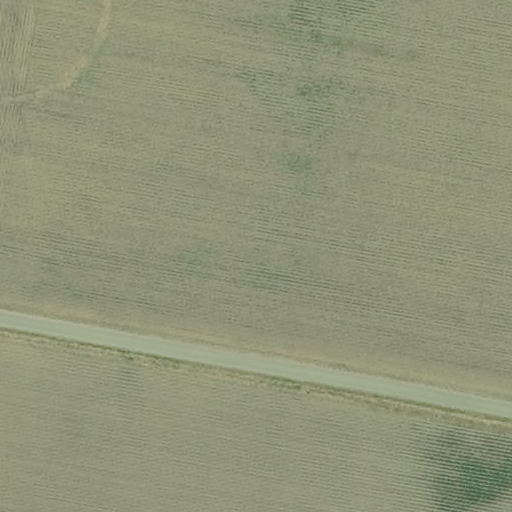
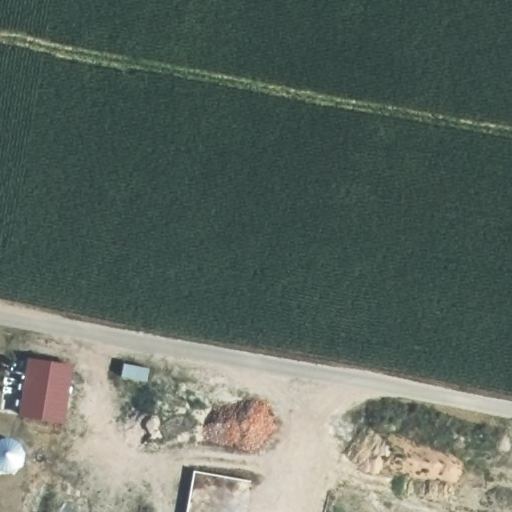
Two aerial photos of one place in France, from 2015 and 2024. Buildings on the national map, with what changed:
new [(72,369),(66,422),(19,417),(28,361),(72,369)]

